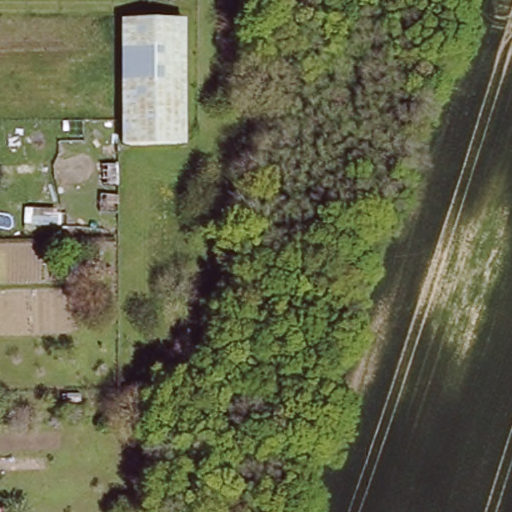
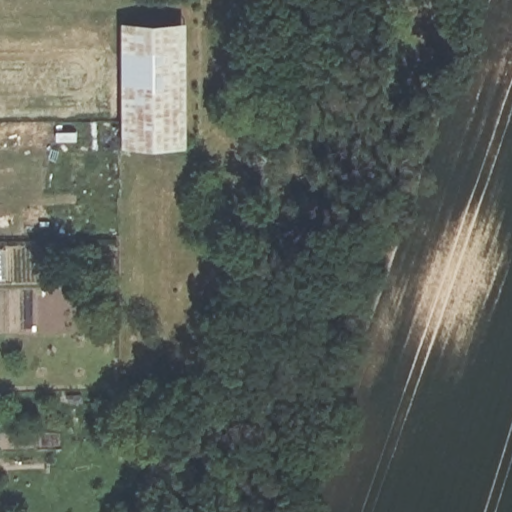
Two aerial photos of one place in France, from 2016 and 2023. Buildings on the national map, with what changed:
unchanged [(183,23),(187,145),(125,145),(125,25),(183,23)]

